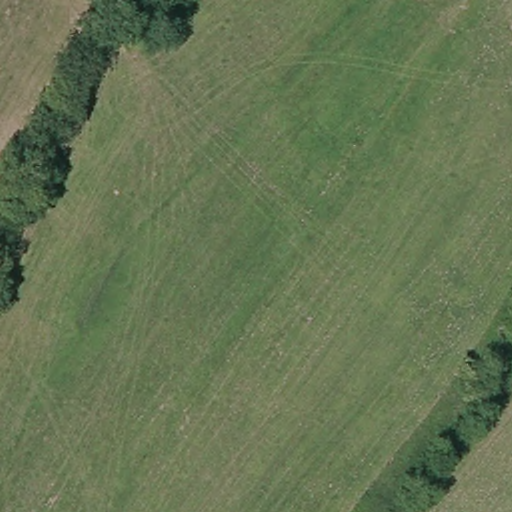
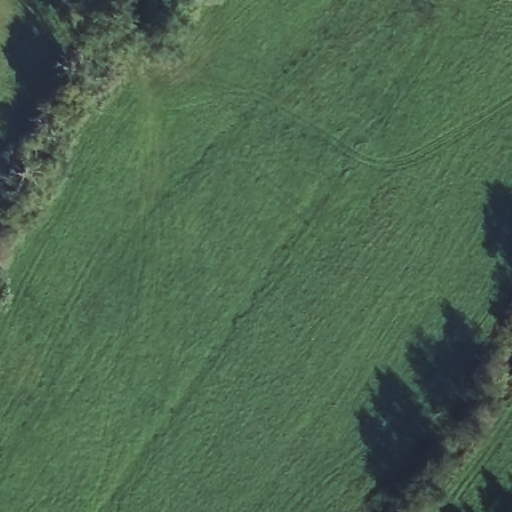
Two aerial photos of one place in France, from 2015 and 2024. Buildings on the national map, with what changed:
[]

